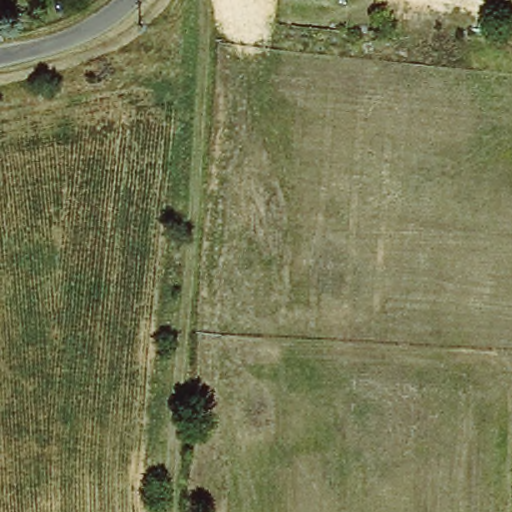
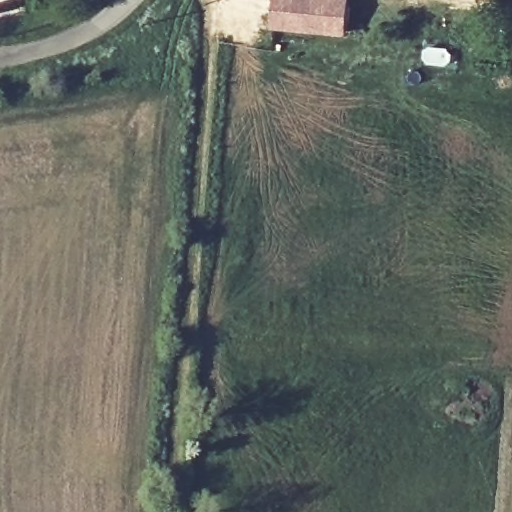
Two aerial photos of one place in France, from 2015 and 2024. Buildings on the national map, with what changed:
new [(276,0),(351,0),(348,36),(273,27),(276,0)]

